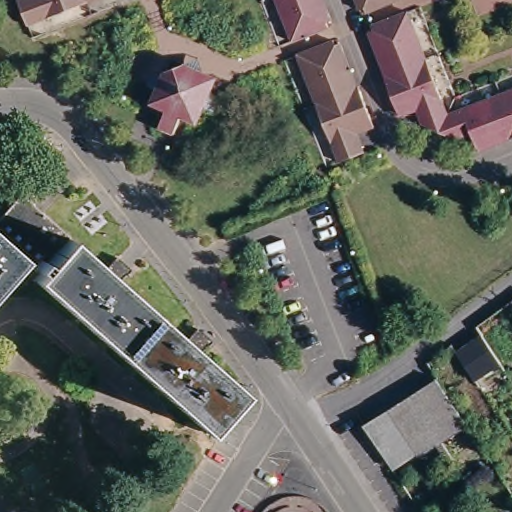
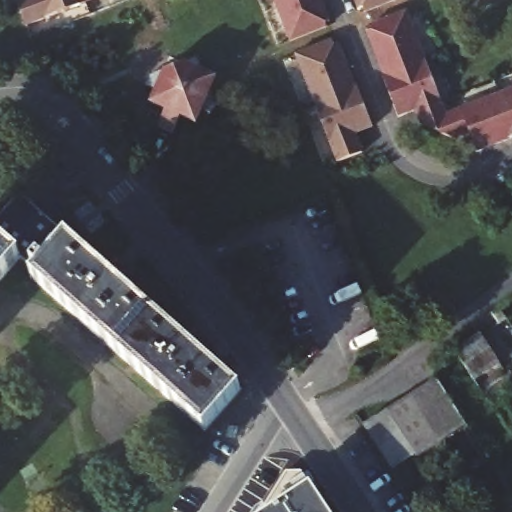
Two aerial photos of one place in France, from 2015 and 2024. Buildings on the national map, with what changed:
unchanged [(20,0),(83,0),(49,13),(28,21),(23,8),(20,1),(20,0)]
unchanged [(326,9),(331,22),(325,25),(326,29),(292,42),(275,0),(323,0),(326,9)]
unchanged [(352,0),(395,0),(362,13),(361,9),(356,10),(352,0)]
unchanged [(383,73),(376,57),(365,28),(369,26),(368,23),(408,8),(427,56),(383,73)]
unchanged [(349,69),(357,89),(316,105),(298,57),(332,43),(334,48),(340,46),(349,69)]
unchanged [(171,104),(156,98),(161,85),(154,82),(160,68),(203,53),(219,96),(214,108),(206,104),(201,117),(185,110),(178,126),(172,123),(164,119),(166,115),(171,104)]
unchanged [(448,109),(438,130),(433,127),(418,121),(413,107),(397,113),(381,73),(383,73),(427,56),(448,109)]
unchanged [(512,85),(512,119),(501,89),(512,85)]
unchanged [(316,105),(357,89),(359,88),(374,129),(357,136),(361,148),(364,153),(339,162),(316,105)]
unchanged [(471,133),(457,138),(438,130),(448,109),(501,89),(512,119),(512,133),(477,147),(471,133)]
unchanged [(24,194),(72,237),(71,239),(244,394),(208,432),(35,278),(40,272),(25,258),(0,286),(0,220),(24,194)]
unchanged [(458,353),(484,337),(501,363),(476,380),(458,353)]
unchanged [(433,427),(414,397),(439,380),(458,410),(467,423),(442,440),(433,427)]
unchanged [(409,443),(391,413),(390,413),(414,397),(433,427),(442,440),(418,455),(409,443)]
unchanged [(391,413),(409,443),(418,455),(394,471),(366,429),(391,413)]
new [(270,512),(311,485),(328,512),(270,512)]

